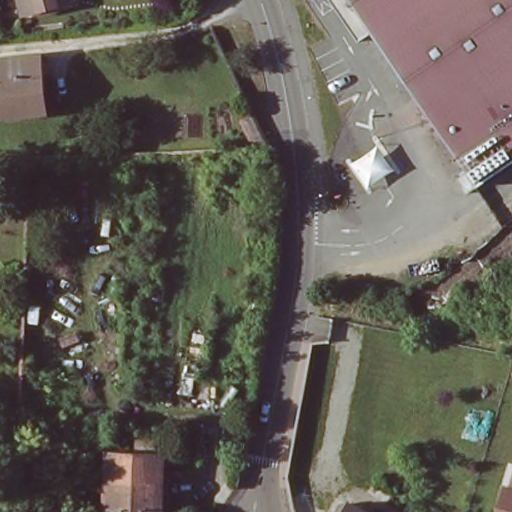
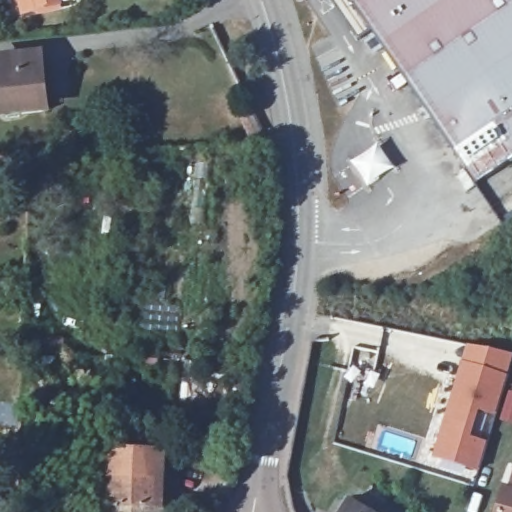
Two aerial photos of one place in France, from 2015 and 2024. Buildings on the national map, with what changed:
unchanged [(61,5),(25,14),(21,0),(68,0),(68,3),(61,5)]
unchanged [(372,32),(359,41),(331,0),(512,0),(512,162),(477,185),(372,32)]
unchanged [(0,84),(0,61),(37,57),(42,106),(3,111),(0,84)]
demolished [(475,187),(465,194),(461,189),(463,187),(457,178),(465,172),(475,187)]
new [(436,456),(465,363),(470,346),(512,354),(512,365),(508,376),(496,414),(487,444),(480,469),(436,456)]
unchanged [(132,455),(132,442),(160,443),(160,456),(158,512),(103,512),(106,454),(132,455)]
unchanged [(293,512),(278,480),(282,462),(299,465),(297,478),(312,511),(311,512),(293,512)]
unchanged [(512,490),(512,512),(497,512),(505,488),(512,490)]
unchanged [(365,512),(343,512),(348,502),(365,512)]
unchanged [(379,512),(376,512),(377,511),(379,512)]

